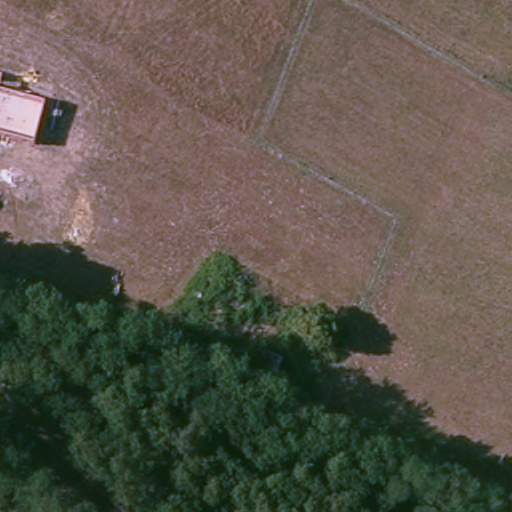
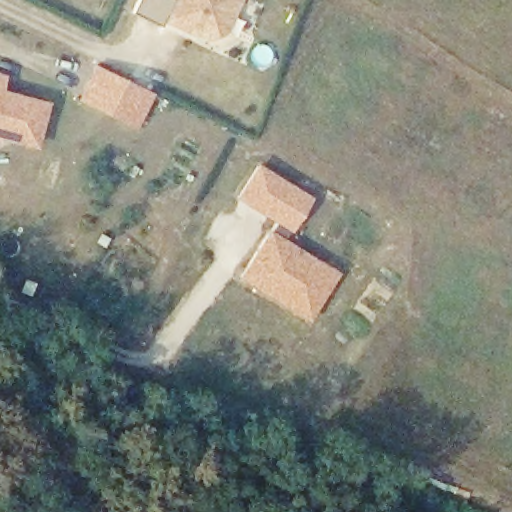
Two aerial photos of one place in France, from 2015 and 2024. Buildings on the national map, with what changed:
new [(209,40),(163,21),(174,0),(241,0),(223,35),(209,40)]
new [(154,93),(137,128),(76,100),(95,64),(154,93)]
new [(5,75),(2,90),(48,102),(37,149),(0,142),(0,74),(5,75)]
new [(277,221),(239,197),(257,166),(309,198),(291,228),(283,240),(336,273),(315,306),(273,280),(266,291),(243,277),(277,221)]
new [(178,244),(191,251),(183,267),(197,276),(186,293),(159,277),(178,244)]

